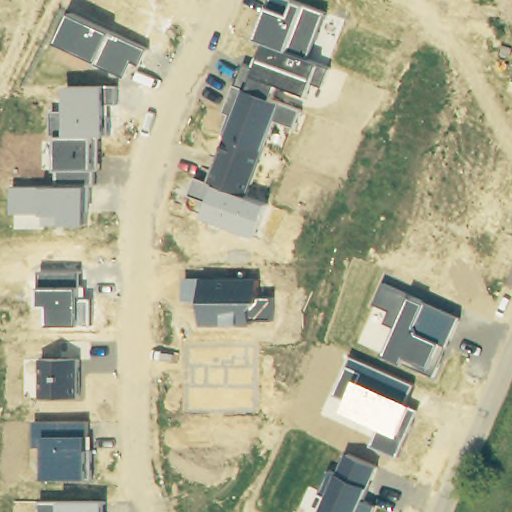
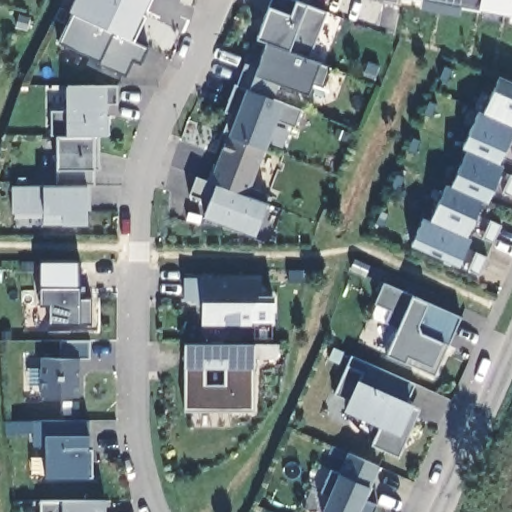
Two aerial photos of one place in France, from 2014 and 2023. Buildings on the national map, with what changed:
unchanged [(207,217),(211,205),(190,195),(198,177),(211,181),(227,134),(224,133),(231,115),(225,112),(236,85),(238,86),(246,65),(260,70),(267,44),(258,40),(271,7),(273,0),(292,0),(297,2),(308,6),(326,13),(307,60),(321,65),(330,70),(322,87),(313,85),(307,95),(280,85),(276,99),(285,102),(302,110),(295,129),(277,123),(266,150),(247,196),(268,204),(257,235),(207,217)]
new [(479,9),(479,10),(424,0),(512,0),(512,15),(479,9)]
unchanged [(141,66),(133,62),(126,77),(99,62),(60,44),(74,14),(113,32),(149,50),(141,66)]
new [(422,218),(430,221),(446,184),(451,185),(467,150),(462,148),(478,111),(483,114),(499,76),(512,83),(512,137),(500,165),(504,167),(488,204),(482,202),(467,237),(472,240),(460,266),(412,246),(422,218)]
unchanged [(89,224),(62,225),(45,225),(44,215),(14,214),(14,187),(43,187),(56,186),(57,169),(57,137),(54,111),(67,111),(68,85),(109,85),(109,136),(95,135),(94,170),(95,186),(87,187),(89,224)]
unchanged [(81,287),(81,298),(90,298),(90,325),(80,325),(50,325),(50,306),(41,306),(41,287),(41,272),(80,271),(81,287)]
unchanged [(252,321),(252,326),(203,326),(204,308),(197,308),(197,301),(185,302),(185,278),(203,277),(259,278),(260,298),(272,298),(272,320),(252,321)]
unchanged [(451,345),(437,375),(405,363),(388,355),(399,330),(387,324),(392,311),(377,305),(385,285),(412,296),(428,303),(461,318),(451,345)]
new [(254,343),(281,343),(280,361),(254,360),(254,369),(255,410),(187,412),(185,370),(185,345),(254,343)]
unchanged [(407,401),(416,405),(416,407),(421,410),(400,457),(373,446),(380,428),(345,412),(349,401),(334,395),(352,356),(413,385),(407,401)]
unchanged [(80,396),(43,397),(42,360),(79,360),(80,396)]
unchanged [(47,478),(47,446),(37,447),(36,421),(89,421),(90,435),(91,477),(47,478)]
unchanged [(374,512),(325,512),(332,495),(322,492),(331,470),(341,472),(349,454),(380,467),(367,501),(377,506),(374,512)]
unchanged [(42,501),(109,501),(109,512),(43,512),(42,501)]

